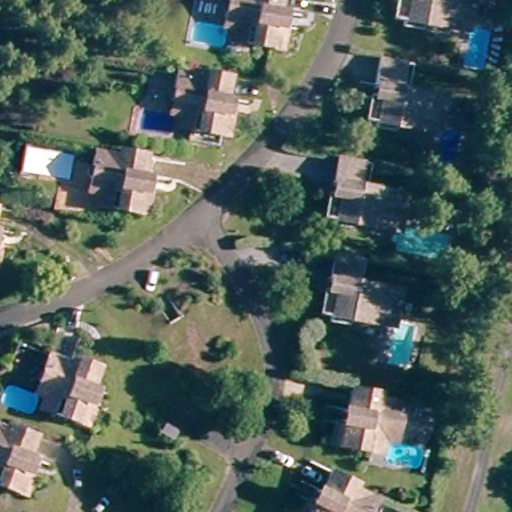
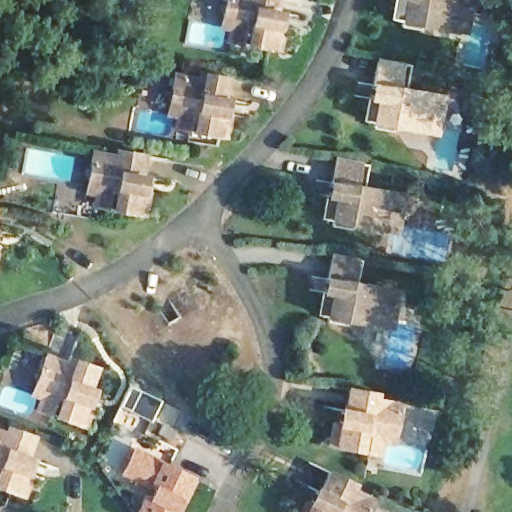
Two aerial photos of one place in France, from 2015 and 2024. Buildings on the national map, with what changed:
unchanged [(224,28),(215,27),(217,14),(221,0),(274,0),(272,13),(266,12),(261,27),(278,29),(274,51),(237,44),(222,40),(224,28)]
unchanged [(460,24),(451,22),(448,33),(418,27),(416,34),(397,30),(397,24),(387,22),(391,0),(464,0),(460,24)]
unchanged [(439,97),(434,121),(426,120),(424,131),(393,126),(392,135),(373,132),(374,124),(364,122),(367,99),(369,83),(375,58),(409,65),(404,92),(439,97)]
unchanged [(173,120),(162,117),(165,104),(169,79),(194,83),(195,74),(223,80),(218,107),(213,107),(210,118),(225,121),(221,142),(183,135),(172,132),(173,120)]
unchanged [(96,191),(86,189),(89,176),(94,150),(118,154),(118,147),(145,152),(141,175),(137,175),(134,187),(148,189),(144,212),(108,205),(95,202),(96,191)]
unchanged [(388,217),(387,221),(378,220),(377,232),(346,226),(346,230),(326,227),(327,223),(317,221),(322,195),(323,186),(328,156),(351,160),(362,162),(358,191),(390,196),(413,200),(411,221),(388,217)]
unchanged [(388,290),(384,317),(374,314),(373,326),(342,320),(342,327),(323,323),(323,317),(313,314),(317,289),(319,278),(325,253),(349,257),(357,258),(353,277),(352,285),(388,290)]
unchanged [(37,356),(60,364),(62,358),(90,368),(83,389),(78,386),(72,400),(86,406),(79,428),(42,417),(28,411),(33,398),(23,395),(27,382),(37,356)]
unchanged [(378,447),(376,460),(365,458),(325,452),(330,428),(347,429),(349,417),(342,416),(346,390),(374,394),(372,404),(394,407),(391,435),(388,449),(378,447)]
unchanged [(160,425),(179,433),(176,441),(173,446),(153,438),(156,430),(160,425)]
unchanged [(4,428),(27,438),(22,457),(16,455),(10,471),(27,476),(19,497),(0,491),(0,435),(4,428)]
new [(159,459),(195,477),(179,512),(133,512),(145,487),(118,474),(130,446),(159,459)]
unchanged [(316,502),(321,490),(315,488),(325,467),(352,480),(346,489),(367,498),(361,512),(291,512),(299,493),(316,502)]

